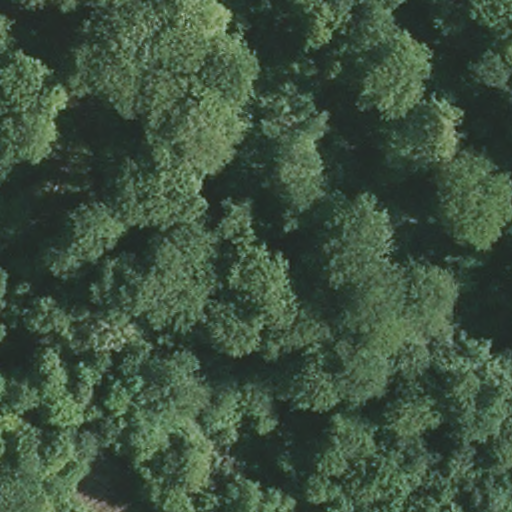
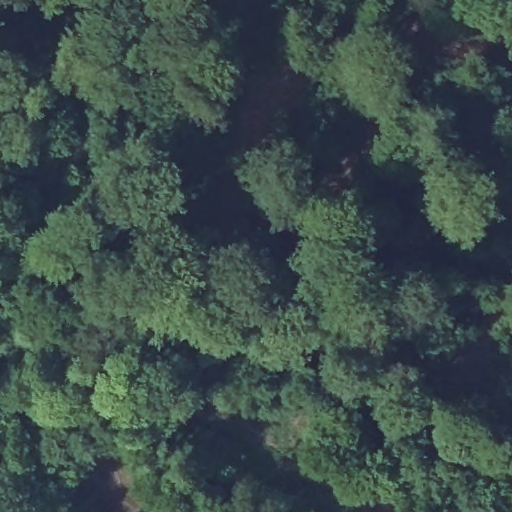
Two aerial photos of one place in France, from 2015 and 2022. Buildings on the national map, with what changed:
unchanged [(54,343),(27,327),(47,298),(69,312),(54,343)]

